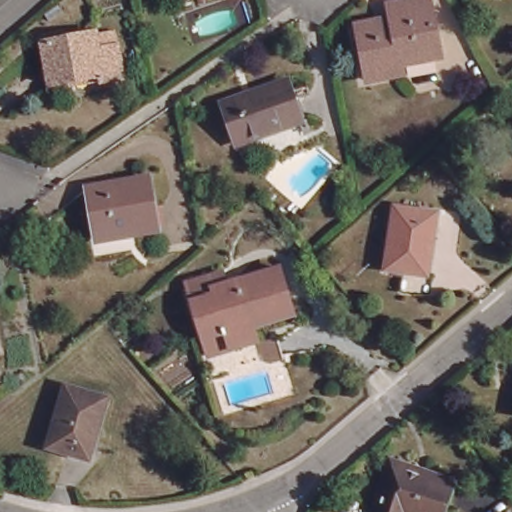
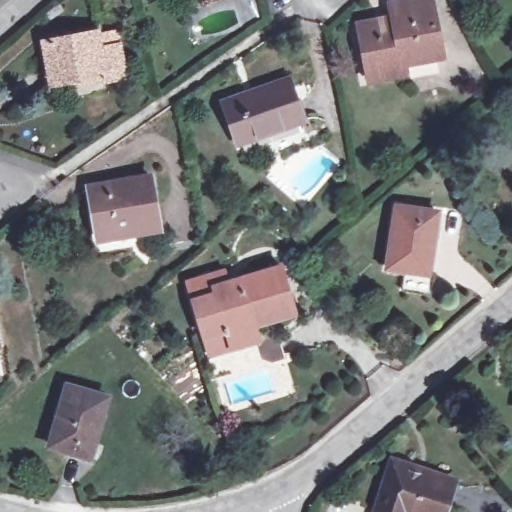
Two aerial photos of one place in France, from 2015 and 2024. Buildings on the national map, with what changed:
unchanged [(363,57),(357,24),(392,17),(390,3),(407,0),(430,0),(440,56),(401,63),(402,73),(377,78),(368,80),(363,57)]
unchanged [(66,79),(50,82),(42,41),(94,31),(94,34),(111,31),(115,46),(116,46),(122,75),(101,79),(67,86),(66,79)]
unchanged [(292,75),(305,115),(243,137),(229,97),(292,75)]
unchanged [(110,182),(110,186),(125,183),(125,179),(148,175),(158,229),(137,233),(137,230),(96,237),(87,186),(110,182)]
unchanged [(431,211),(428,236),(425,235),(420,272),(427,274),(425,295),(395,291),(398,270),(380,268),(389,206),(431,211)]
unchanged [(182,298),(177,280),(185,277),(200,273),(213,269),(216,281),(270,265),(285,313),(243,326),(247,341),(221,349),(198,356),(193,337),(182,298)]
unchanged [(267,337),(273,359),(261,363),(247,351),(240,353),(238,346),(267,337)]
unchanged [(102,395),(91,432),(95,433),(87,457),(46,444),(65,384),(102,395)]
unchanged [(432,512),(399,512),(393,510),(392,512),(364,512),(381,458),(443,478),(432,512)]

